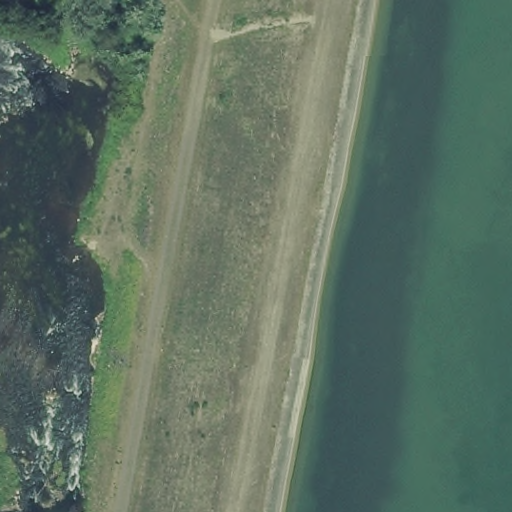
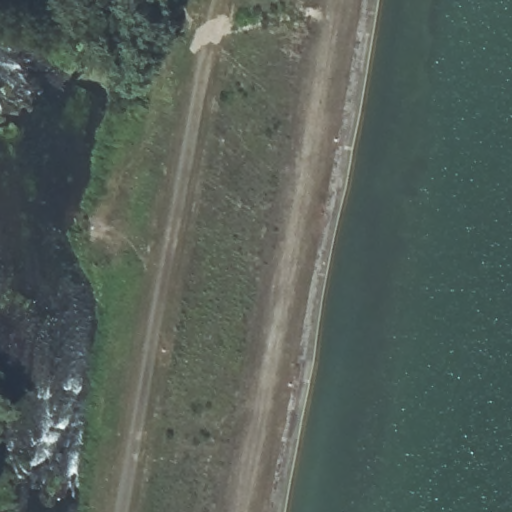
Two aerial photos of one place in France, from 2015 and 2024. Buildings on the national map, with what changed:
[]

